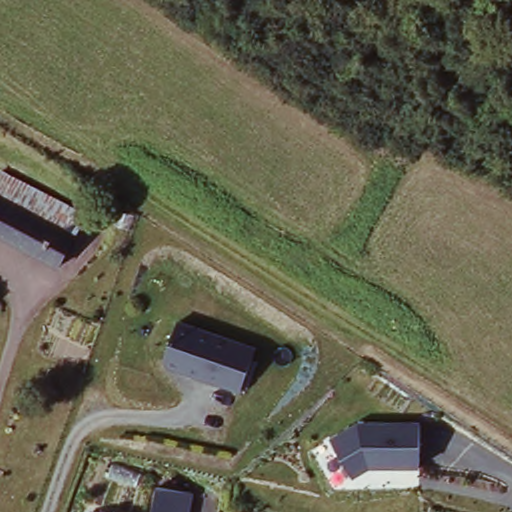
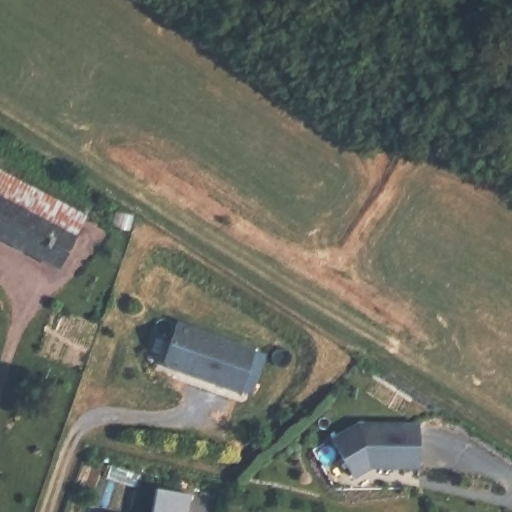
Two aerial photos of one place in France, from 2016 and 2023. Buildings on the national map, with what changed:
unchanged [(77,239),(0,194),(0,169),(89,220),(77,239)]
unchanged [(0,194),(77,239),(60,270),(0,236),(0,194)]
unchanged [(242,392),(159,365),(175,320),(254,346),(242,392)]
unchanged [(368,468),(355,477),(328,435),(358,419),(421,420),(420,467),(368,468)]
unchanged [(191,512),(155,512),(159,489),(194,495),(191,512)]

